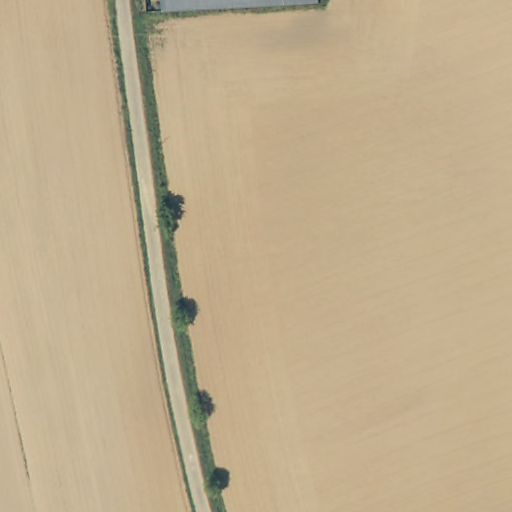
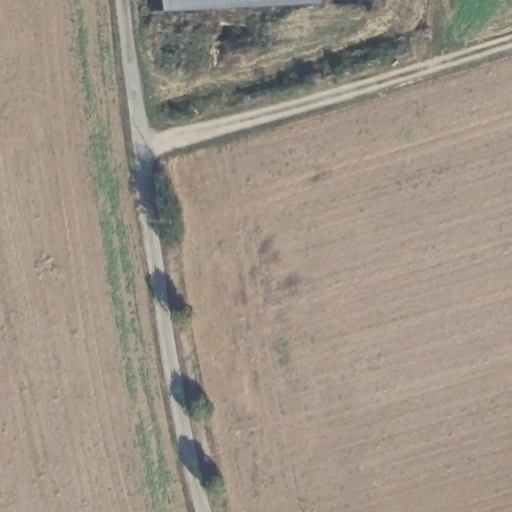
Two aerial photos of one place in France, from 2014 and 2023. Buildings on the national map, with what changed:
unchanged [(149,14),(148,0),(277,0),(149,14)]

